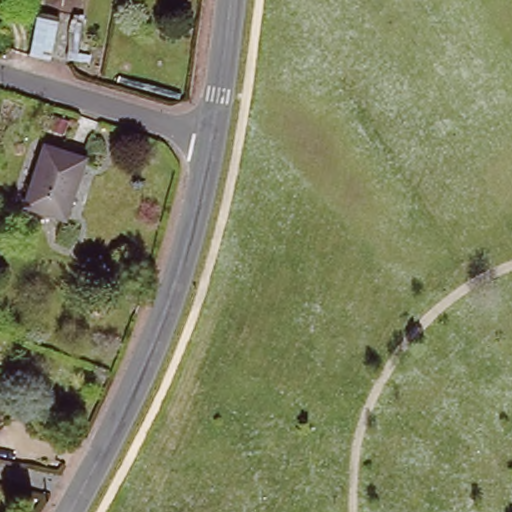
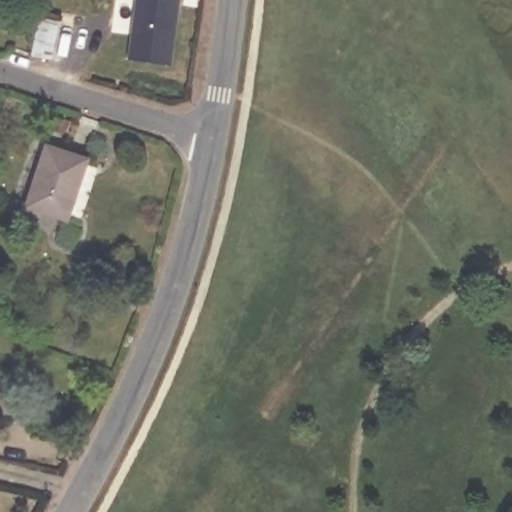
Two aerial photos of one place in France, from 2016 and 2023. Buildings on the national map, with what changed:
new [(177,0),(168,65),(127,61),(135,0),(177,0)]
new [(33,19),(55,23),(50,57),(29,53),(33,19)]
unchanged [(67,119),(79,124),(73,136),(61,131),(67,119)]
unchanged [(48,142),(88,154),(67,214),(28,203),(48,142)]

